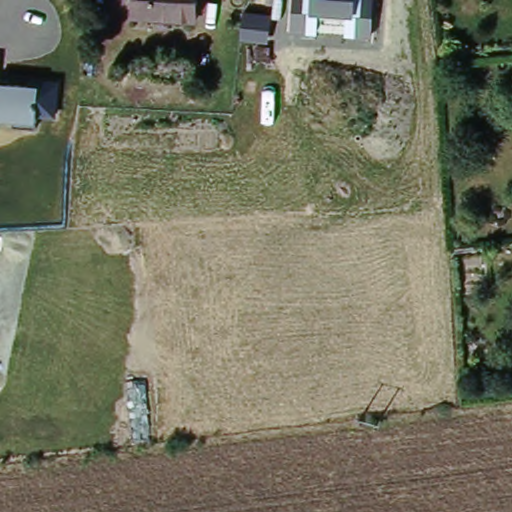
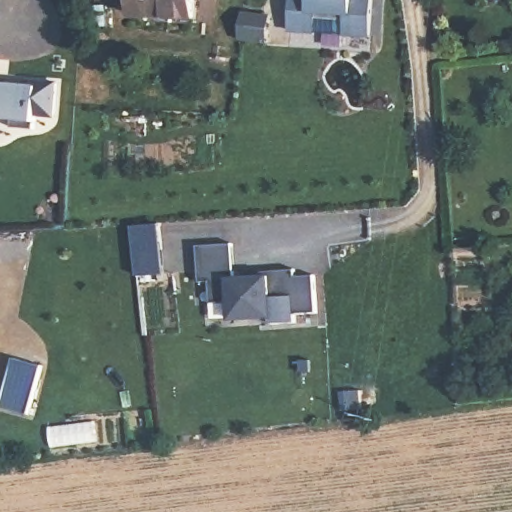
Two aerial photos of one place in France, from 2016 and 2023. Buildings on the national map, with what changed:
unchanged [(131,20),(133,0),(198,0),(196,23),(131,20)]
unchanged [(345,40),(345,19),(319,18),(317,36),(287,35),(290,0),(373,0),(370,41),(345,40)]
new [(245,11),(268,15),(264,42),(241,40),(245,11)]
unchanged [(32,78),(58,81),(56,119),(37,118),(36,125),(36,130),(12,129),(12,121),(0,120),(0,83),(31,85),(32,78)]
new [(138,276),(135,248),(133,226),(159,224),(161,245),(164,275),(138,276)]
new [(234,280),(247,280),(247,275),(268,273),(294,271),(295,278),(314,277),(316,315),(294,316),(295,325),(271,325),(271,319),(232,321),(231,304),(211,305),(209,283),(199,284),(197,247),(232,245),(234,280)]
new [(14,360),(42,367),(29,415),(0,407),(14,360)]

